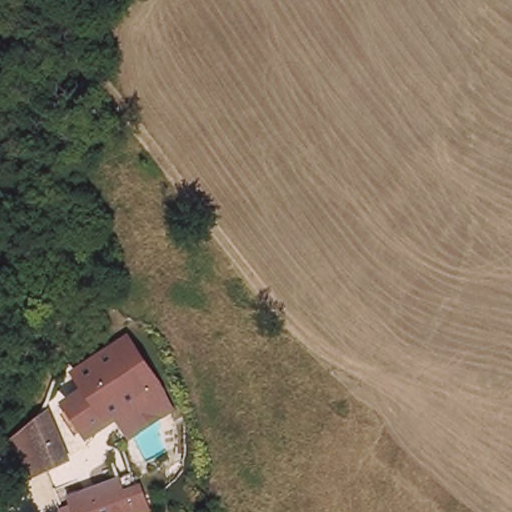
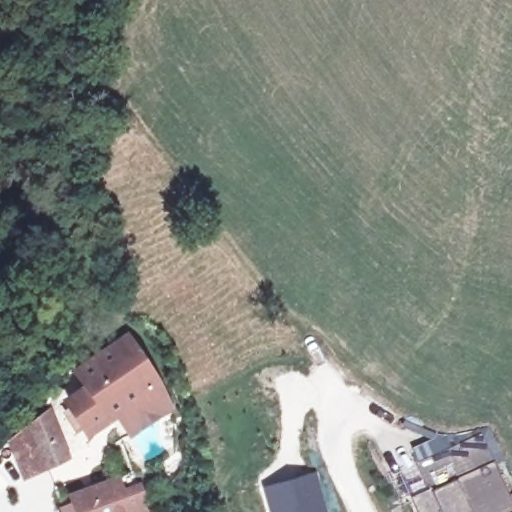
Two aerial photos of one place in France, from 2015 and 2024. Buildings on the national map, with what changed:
unchanged [(139,336),(151,388),(120,398),(102,403),(69,413),(62,377),(86,370),(82,352),(139,336)]
unchanged [(152,416),(108,430),(102,403),(120,398),(151,388),(152,416)]
unchanged [(65,473),(41,477),(37,436),(61,428),(65,473)]
new [(418,465),(481,435),(495,462),(512,500),(512,512),(418,512),(412,500),(430,491),(418,465)]
new [(327,512),(270,512),(264,488),(314,473),(327,512)]
unchanged [(116,495),(132,490),(137,511),(135,512),(71,512),(67,493),(113,480),(116,495)]

